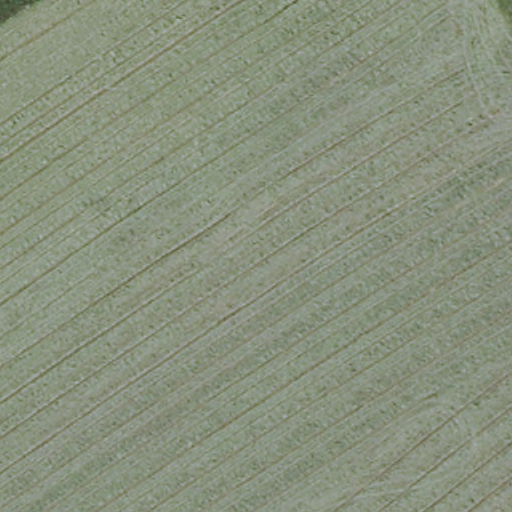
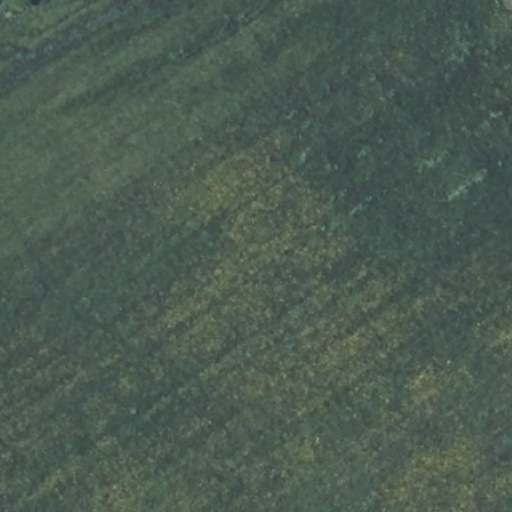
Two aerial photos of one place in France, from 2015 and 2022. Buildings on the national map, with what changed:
[]

